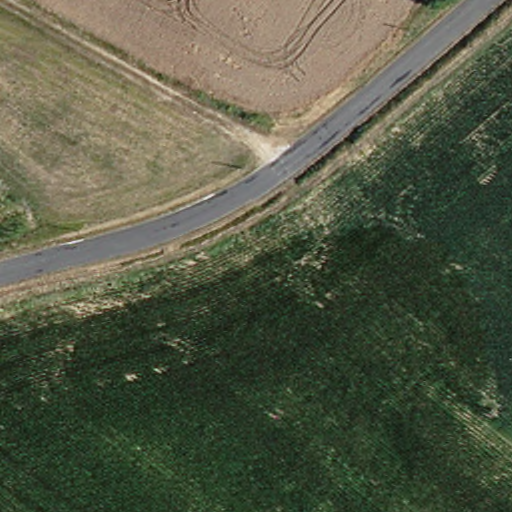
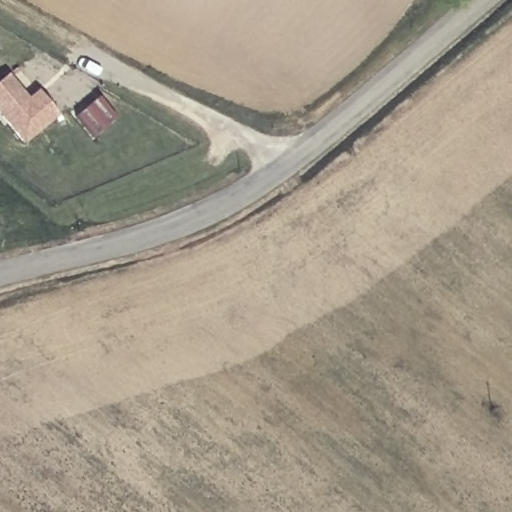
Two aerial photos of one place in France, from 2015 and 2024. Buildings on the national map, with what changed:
new [(24,144),(0,115),(0,82),(7,77),(27,101),(38,93),(57,117),(24,144)]

